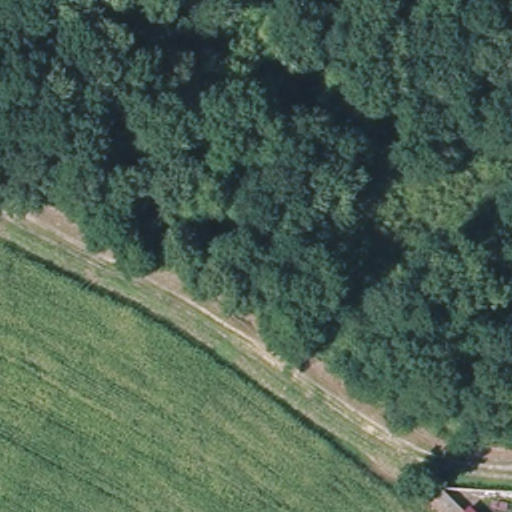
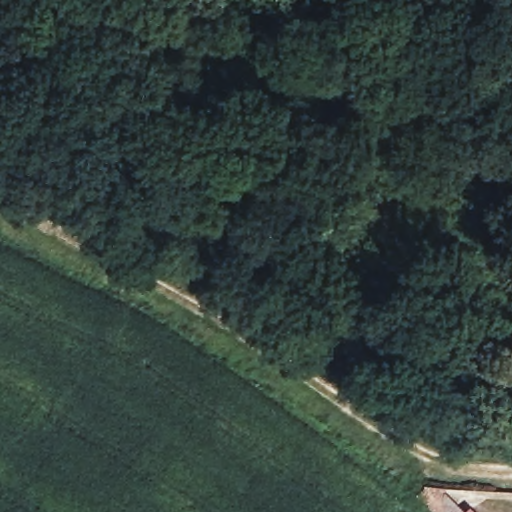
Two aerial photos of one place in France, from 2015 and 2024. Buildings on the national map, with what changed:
unchanged [(444,490),(469,512),(435,512),(427,505),(444,490)]
unchanged [(472,507),(477,512),(470,512),(472,507)]

